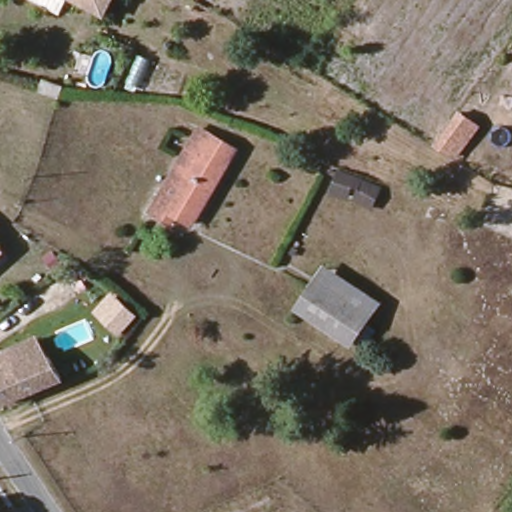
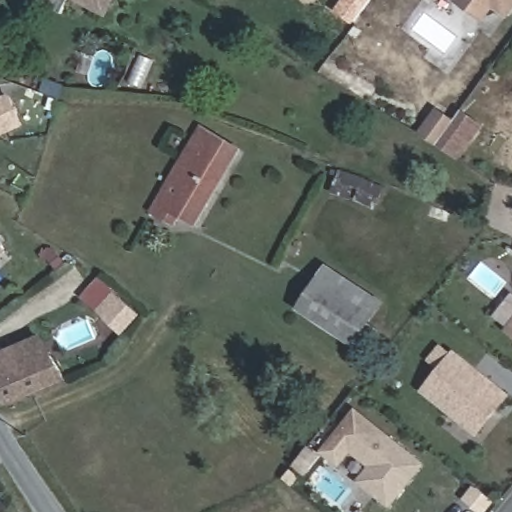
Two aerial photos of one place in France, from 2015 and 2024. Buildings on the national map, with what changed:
unchanged [(87,0),(84,6),(72,0),(87,0)]
unchanged [(112,0),(104,16),(84,6),(87,0),(112,0)]
demolished [(238,0),(248,0),(246,4),(238,0)]
demolished [(263,0),(277,0),(274,5),(263,0)]
new [(335,10),(342,0),(370,0),(353,23),(335,10)]
new [(494,8),(483,22),(452,1),(454,0),(512,0),(512,12),(507,18),(494,8)]
new [(26,126),(0,137),(0,98),(11,92),(26,126)]
unchanged [(456,159),(435,146),(462,108),(481,123),(456,159)]
unchanged [(200,129),(234,150),(188,222),(173,213),(167,222),(148,210),(200,129)]
new [(342,172),(366,181),(382,188),(373,207),(358,200),(362,191),(353,187),(350,198),(334,192),(342,172)]
unchanged [(0,249),(0,243),(3,246),(0,249)]
unchanged [(327,271),(378,305),(366,323),(316,288),(327,271)]
unchanged [(124,335),(95,310),(115,287),(140,313),(124,335)]
unchanged [(366,323),(351,346),(301,311),(316,288),(366,323)]
new [(512,326),(512,333),(508,330),(512,326)]
unchanged [(42,336),(50,356),(0,374),(0,353),(42,336)]
new [(477,432),(425,390),(454,354),(506,396),(477,432)]
unchanged [(50,356),(59,378),(0,399),(0,374),(50,356)]
new [(390,504),(361,479),(371,466),(350,449),(337,464),(323,450),(355,411),(421,465),(390,504)]

